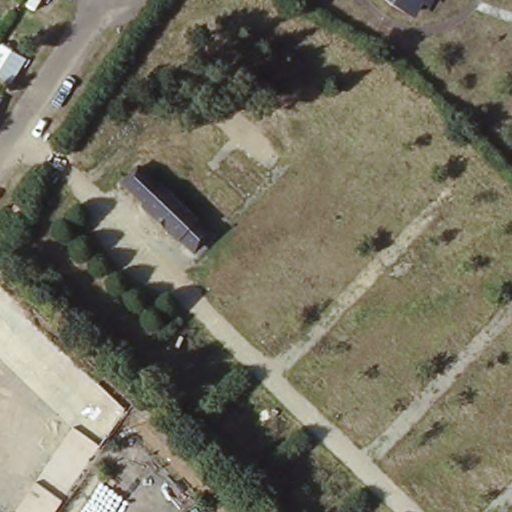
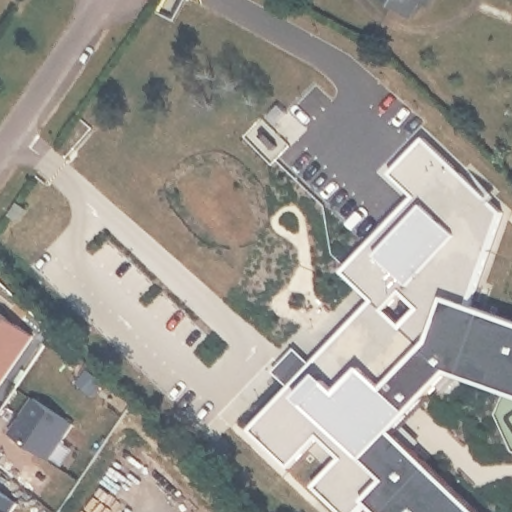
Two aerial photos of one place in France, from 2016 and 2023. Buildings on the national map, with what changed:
unchanged [(421,7),(414,21),(396,11),(389,5),(390,0),(432,0),(427,10),(421,7)]
new [(368,502),(358,512),(342,512),(317,488),(341,460),(332,451),(320,437),(290,468),(252,429),(290,388),(376,301),(343,268),(381,230),(391,239),(426,204),(393,170),(425,136),(503,212),(470,304),(512,320),(512,394),(452,373),(397,435),(476,512),(378,512),(368,502)]
demolished [(140,209),(142,205),(122,186),(137,170),(158,190),(162,187),(199,222),(196,226),(181,242),(179,246),(163,231),(169,226),(161,218),(156,224),(140,209)]
new [(16,202),(28,211),(17,227),(5,219),(16,202)]
new [(35,333),(0,383),(0,309),(35,333)]
new [(35,393),(74,420),(49,456),(11,429),(35,393)]
new [(19,502),(11,512),(0,512),(0,487),(19,502)]

